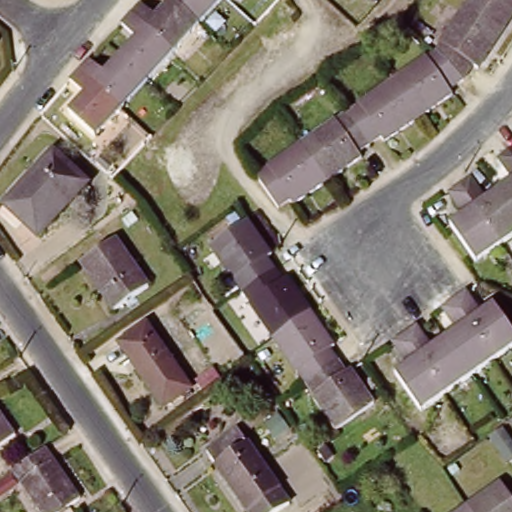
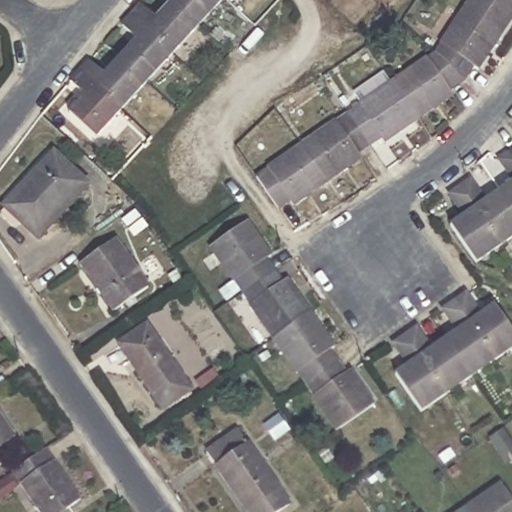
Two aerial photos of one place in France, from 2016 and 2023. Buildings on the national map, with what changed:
unchanged [(174,0),(201,25),(175,52),(135,14),(140,8),(155,21),(174,0)]
unchanged [(201,25),(174,0),(225,0),(201,25)]
unchanged [(512,19),(502,35),(462,7),(467,0),(512,0),(512,19)]
unchanged [(502,35),(482,65),(476,61),(463,74),(433,47),(462,7),(502,35)]
unchanged [(175,52),(149,80),(123,55),(135,44),(120,30),(135,14),(175,52)]
unchanged [(433,47),(463,74),(448,90),(451,93),(423,115),(395,77),(423,57),(433,47)]
unchanged [(149,80),(122,107),(84,71),(92,62),(105,75),(123,55),(149,80)]
unchanged [(122,107),(95,137),(70,114),(85,98),(71,85),(84,71),(122,107)]
unchanged [(395,77),(423,115),(385,143),(380,138),(373,143),(349,110),(395,77)]
unchanged [(349,110),(373,143),(355,156),(360,160),(329,181),(302,143),(349,110)]
unchanged [(302,143),(329,181),(292,207),(288,201),(280,207),(257,175),(302,143)]
unchanged [(52,155),(86,187),(42,241),(8,209),(52,155)]
unchanged [(511,185),(498,168),(512,159),(512,210),(500,193),(511,185)]
unchanged [(512,244),(500,252),(461,196),(475,186),(487,203),(500,193),(512,210),(512,244)]
unchanged [(500,252),(480,268),(450,228),(462,219),(450,204),(461,196),(500,252)]
unchanged [(275,261),(270,265),(280,278),(246,302),(213,254),(250,227),(275,261)]
unchanged [(150,286),(117,309),(81,258),(113,234),(150,286)]
unchanged [(290,294),(293,292),(313,322),(277,349),(246,302),(280,278),(290,294)]
unchanged [(512,348),(493,361),(455,306),(467,297),(482,318),(491,311),(512,340),(512,348)]
unchanged [(493,361),(470,380),(443,342),(456,332),(443,315),(455,306),(493,361)]
unchanged [(313,322),(333,351),(329,355),(342,372),(310,395),(277,349),(313,322)]
unchanged [(164,407),(160,400),(124,343),(146,327),(183,384),(187,390),(164,407)]
unchanged [(470,380),(445,398),(405,342),(418,332),(432,350),(443,342),(470,380)]
unchanged [(445,398),(422,415),(396,379),(409,370),(395,350),(405,342),(445,398)]
unchanged [(347,379),(352,375),(375,410),(338,436),(310,395),(342,372),(347,379)]
unchanged [(22,440),(0,456),(0,409),(22,440)]
unchanged [(240,439),(257,463),(227,484),(212,460),(240,439)]
unchanged [(77,512),(39,512),(15,478),(46,457),(82,509),(77,512)]
unchanged [(247,512),(227,484),(257,463),(290,512),(247,512)]
unchanged [(469,512),(466,507),(494,487),(511,512),(469,512)]
unchanged [(460,512),(466,507),(469,512),(460,512)]

